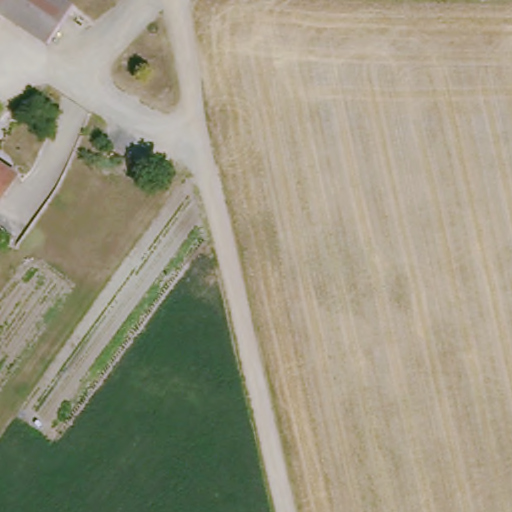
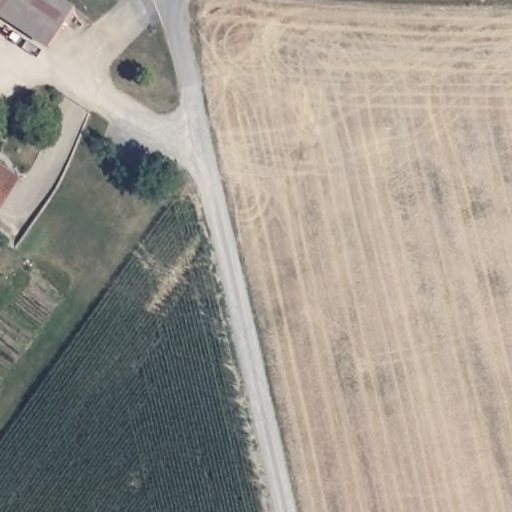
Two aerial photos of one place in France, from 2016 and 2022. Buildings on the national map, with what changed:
unchanged [(47,50),(0,17),(0,0),(56,0),(73,12),(47,50)]
unchanged [(0,198),(0,163),(16,175),(0,198)]

